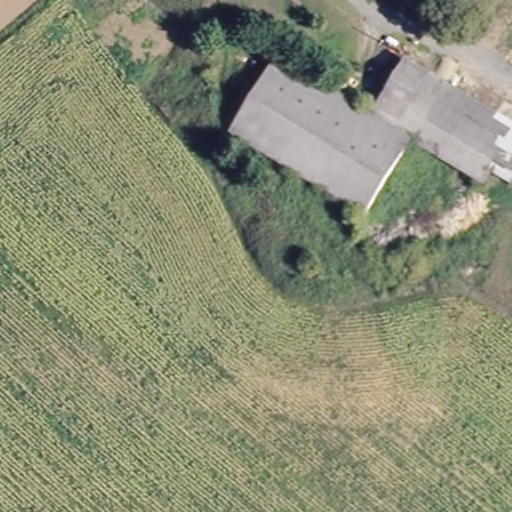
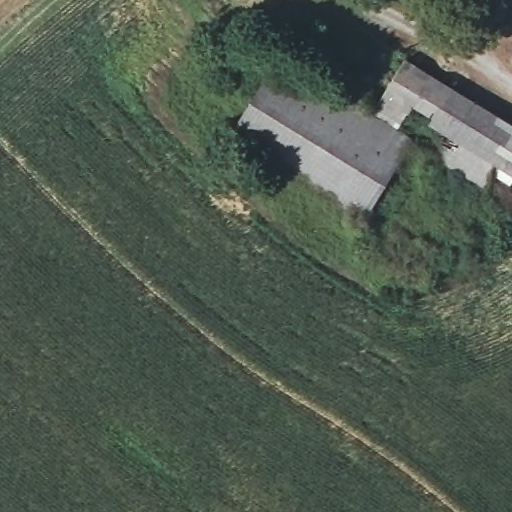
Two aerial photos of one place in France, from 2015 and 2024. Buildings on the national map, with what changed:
unchanged [(406,55),(512,120),(512,133),(496,123),(468,106),(401,64),(406,55)]
unchanged [(268,62),(363,119),(398,64),(400,64),(401,64),(468,106),(496,123),(512,133),(512,136),(490,171),(488,175),(478,190),(476,191),(475,191),(403,148),(360,222),(357,222),(294,184),(231,145),(225,141),(268,62)]
unchanged [(510,185),(488,175),(490,171),(512,136),(512,183),(510,185)]

